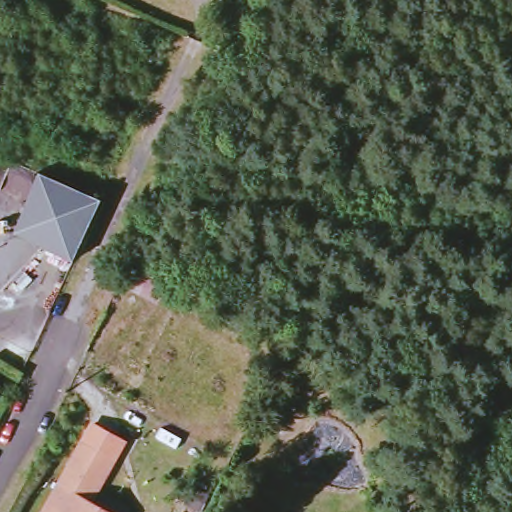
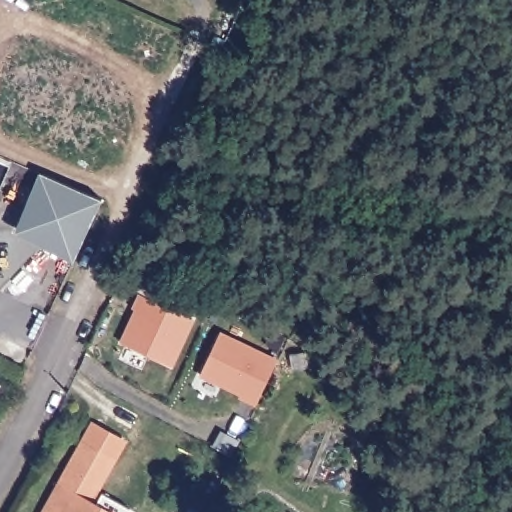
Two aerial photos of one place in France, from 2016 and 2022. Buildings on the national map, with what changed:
unchanged [(105,198),(84,242),(76,258),(17,230),(45,171),(105,198)]
new [(119,280),(124,272),(132,257),(156,270),(167,276),(155,300),(119,280)]
demolished [(132,257),(156,270),(148,285),(124,272),(132,257)]
new [(197,317),(172,367),(119,343),(133,310),(131,309),(140,292),(155,300),(197,317)]
new [(220,331),(279,358),(254,407),(238,400),(239,396),(199,376),(220,331)]
unchanged [(127,512),(39,512),(90,418),(128,439),(99,487),(130,505),(127,512)]
new [(192,486),(209,495),(200,512),(184,503),(192,486)]

